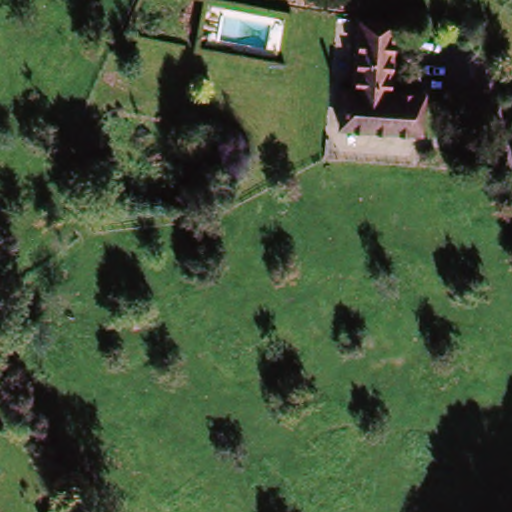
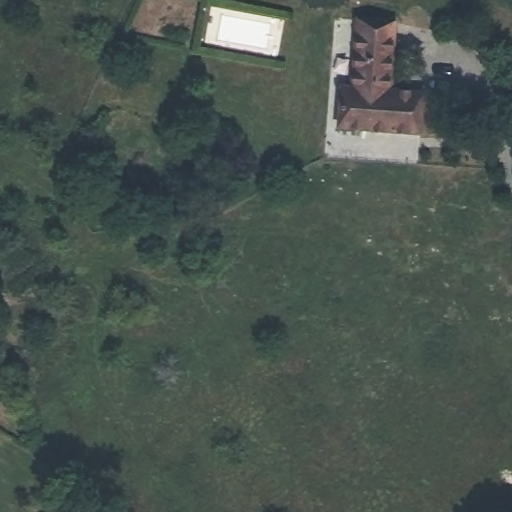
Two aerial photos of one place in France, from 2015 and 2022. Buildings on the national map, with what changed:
unchanged [(392,19),(392,25),(390,88),(460,89),(459,135),(334,129),(336,86),(350,86),(355,17),(392,19)]

